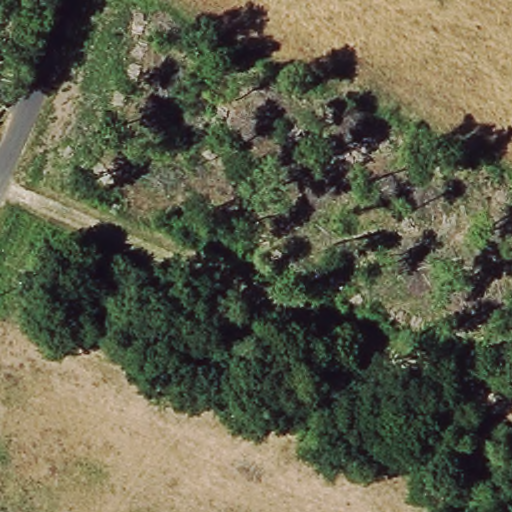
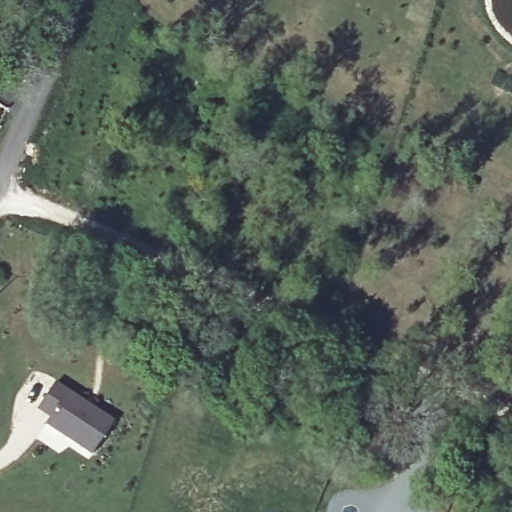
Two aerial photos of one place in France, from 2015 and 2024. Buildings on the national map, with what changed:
new [(50,420),(37,410),(55,383),(112,422),(91,455),(46,426),(50,420)]

